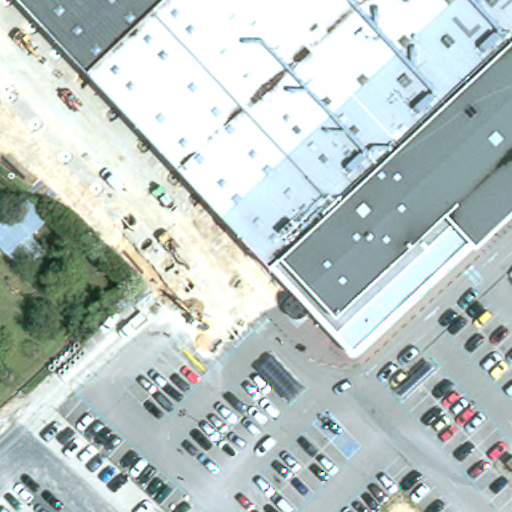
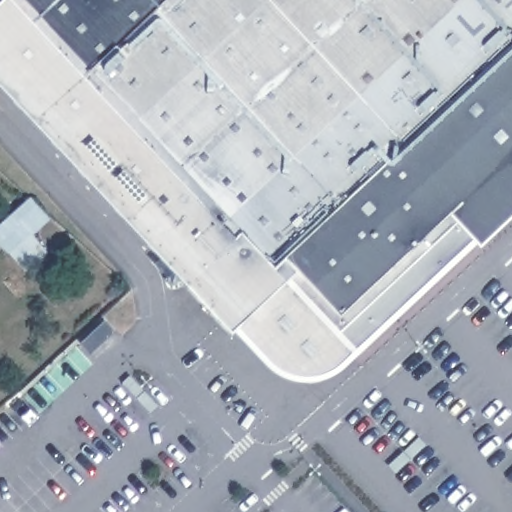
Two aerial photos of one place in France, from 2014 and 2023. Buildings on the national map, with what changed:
new [(478,248),(474,244),(359,353),(347,365),(334,374),(322,380),(313,382),(299,382),(286,381),(273,374),(234,332),(231,335),(0,88),(0,0),(21,0),(291,287),(293,287),(299,283),(319,303),(314,308),(314,310),(334,333),(337,333),(468,215),(469,210),(461,203),(480,184),(493,180),(504,174),(512,170),(512,217),(478,248)]
unchanged [(504,174),(493,180),(480,184),(461,203),(469,210),(468,215),(337,333),(334,333),(314,310),(314,308),(319,303),(299,283),(293,287),(291,287),(21,0),(512,0),(512,170),(504,174)]
unchanged [(0,227),(33,198),(46,215),(6,249),(0,243),(0,227)]
demolished [(85,512),(100,495),(117,512),(85,512)]
demolished [(142,512),(118,512),(129,500),(142,512)]

